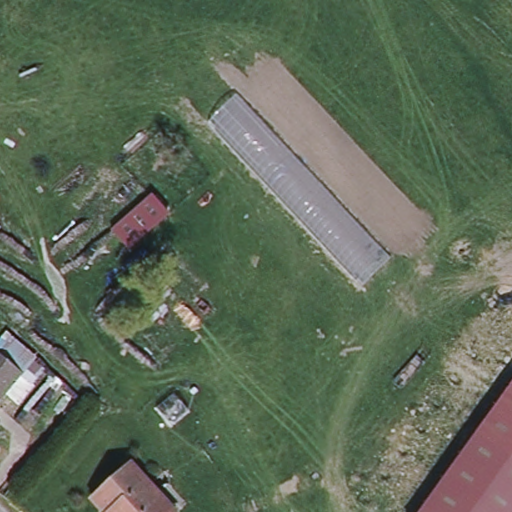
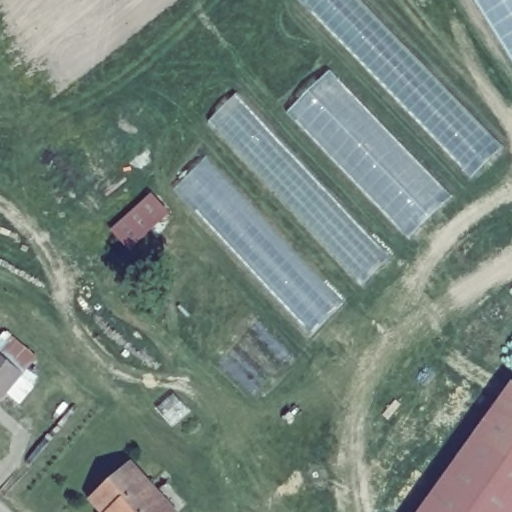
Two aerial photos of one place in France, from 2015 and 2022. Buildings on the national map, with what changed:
new [(504,147),(472,178),(299,0),(360,0),(504,147)]
new [(453,196),(409,239),(288,111),(330,71),(453,196)]
unchanged [(391,258),(363,285),(208,122),(237,93),(391,258)]
new [(342,305),(313,335),(175,189),(205,158),(342,305)]
new [(172,214),(129,252),(110,230),(152,194),(172,214)]
unchanged [(7,336),(34,358),(21,375),(0,402),(0,346),(7,336)]
unchanged [(437,484),(512,381),(512,512),(416,512),(420,506),(437,484)]
unchanged [(157,504),(164,512),(105,512),(99,504),(92,497),(130,463),(137,471),(162,498),(157,504)]

